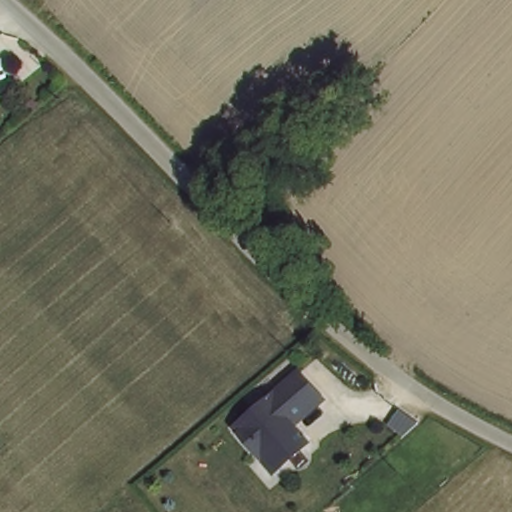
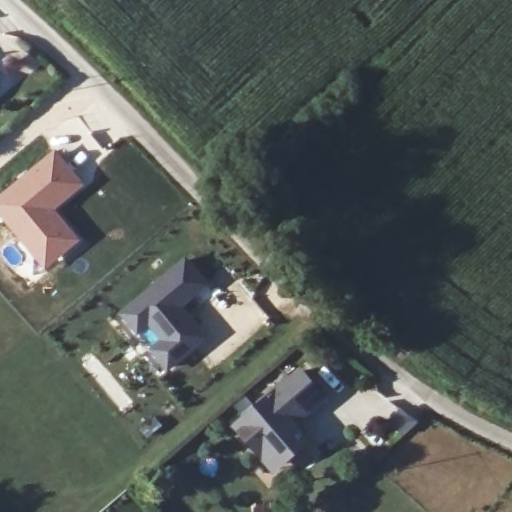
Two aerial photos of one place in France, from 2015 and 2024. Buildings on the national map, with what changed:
new [(86,185),(57,210),(81,239),(43,270),(0,218),(0,192),(55,148),(86,185)]
new [(210,285),(184,307),(210,338),(167,371),(150,351),(160,341),(149,327),(137,336),(118,315),(185,257),(210,285)]
unchanged [(267,448),(260,453),(235,424),(285,382),(300,369),(320,394),(305,407),(290,419),(307,439),(280,462),(267,448)]

